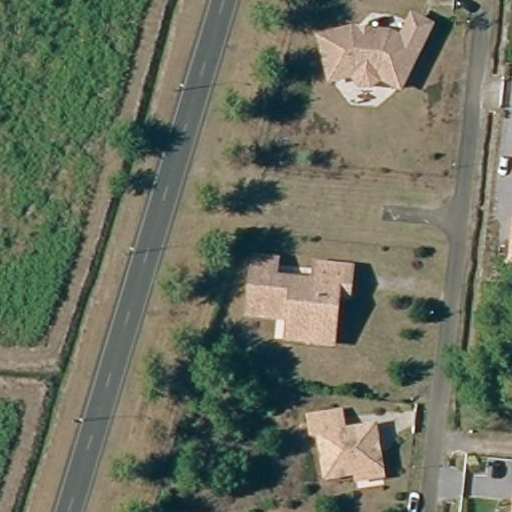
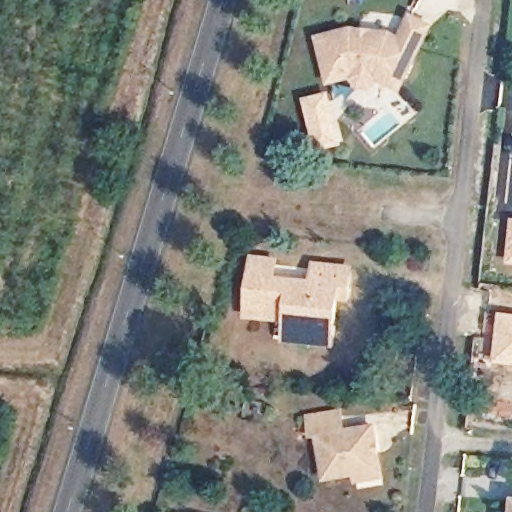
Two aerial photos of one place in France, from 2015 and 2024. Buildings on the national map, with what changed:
unchanged [(385,76),(376,83),(362,81),(357,75),(338,76),(329,34),(357,27),(393,32),(407,38),(417,16),(433,23),(423,45),(405,85),(385,76)]
new [(317,143),(306,99),(332,92),(345,145),(323,151),(322,146),(317,143)]
unchanged [(512,236),(512,263),(509,263),(512,236)]
unchanged [(302,345),(277,342),(281,322),(242,318),(249,261),(267,262),(266,281),(305,285),(307,267),(343,272),(342,289),(341,301),(328,300),(325,327),(322,347),(302,345)]
new [(501,314),(512,315),(512,365),(497,363),(501,314)]
unchanged [(358,483),(357,475),(330,479),(322,439),(315,439),(312,422),(343,417),(347,433),(376,430),(383,472),(385,479),(358,483)]
new [(512,503),(512,511),(509,512),(511,503),(512,503)]
unchanged [(512,511),(512,512),(509,512),(512,511)]

